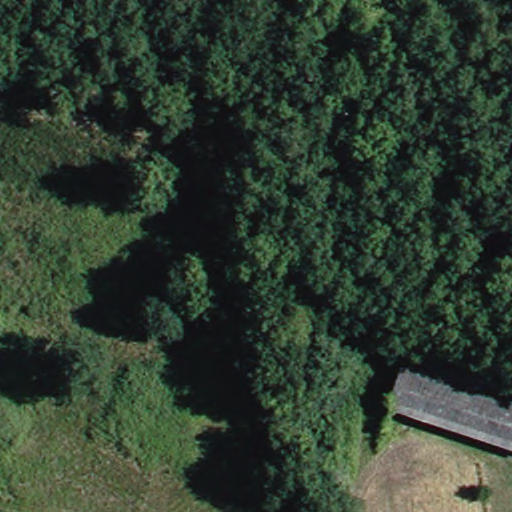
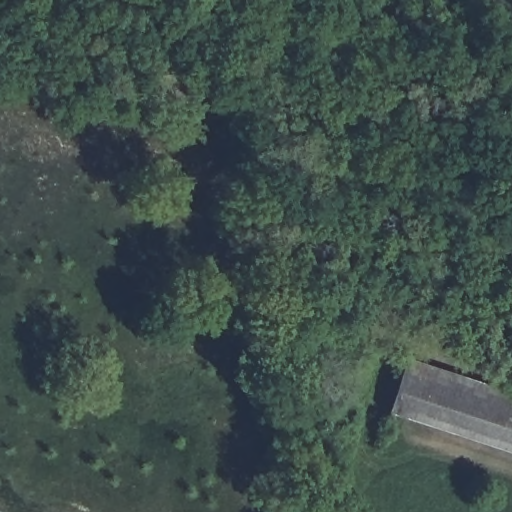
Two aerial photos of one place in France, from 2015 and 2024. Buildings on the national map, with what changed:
unchanged [(481,435),(399,404),(415,355),(512,389),(512,411),(493,404),(481,435)]
unchanged [(481,435),(493,404),(512,411),(512,447),(481,435)]

